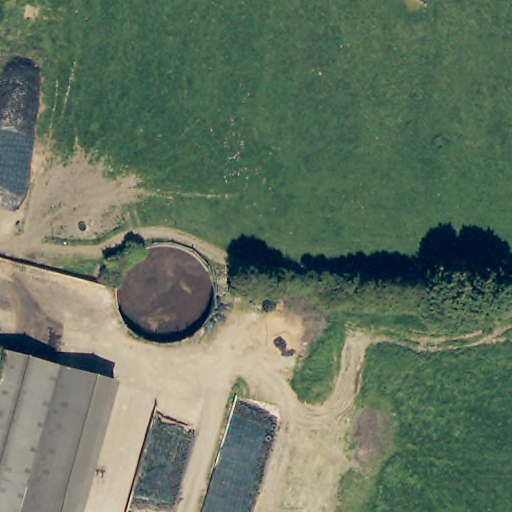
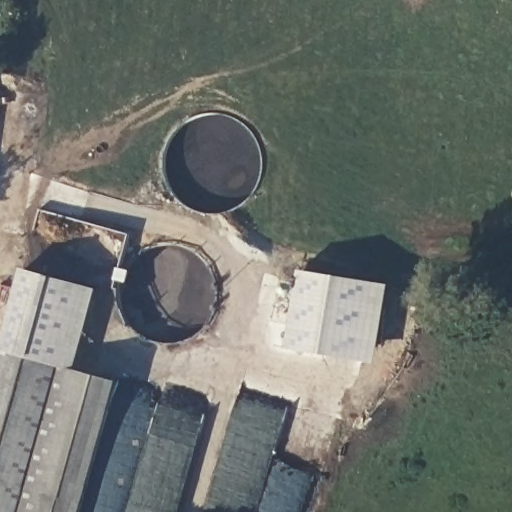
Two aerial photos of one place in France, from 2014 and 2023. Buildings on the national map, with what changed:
new [(75,377),(56,371),(0,353),(0,343),(22,268),(99,289),(75,377)]
new [(379,364),(286,350),(300,269),(392,285),(379,364)]
unchanged [(56,371),(12,512),(0,512),(0,353),(56,371)]
unchanged [(79,512),(12,512),(56,371),(117,391),(79,512)]

